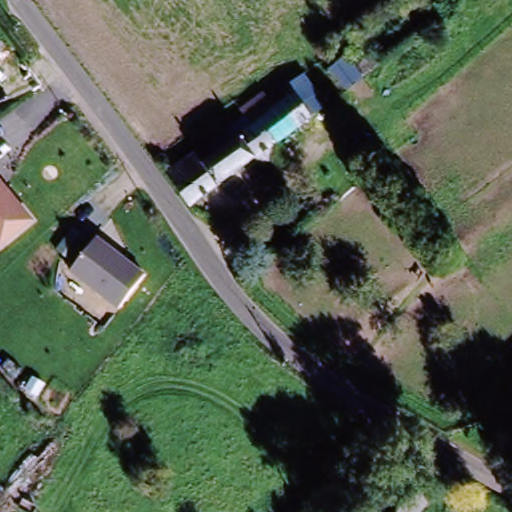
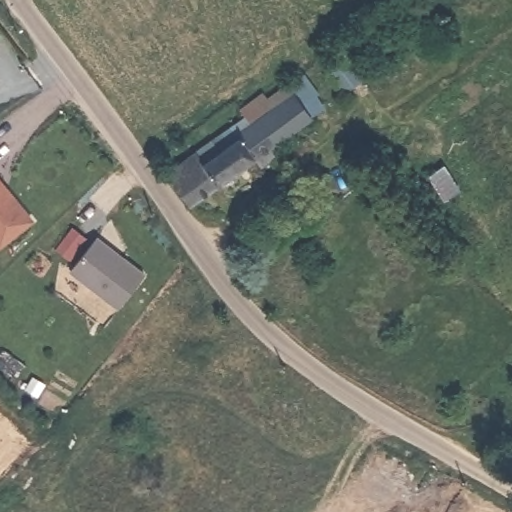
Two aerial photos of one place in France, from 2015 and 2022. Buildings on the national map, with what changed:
unchanged [(336,86),(322,66),(350,48),(359,58),(367,51),(377,62),(336,86)]
unchanged [(165,165),(256,110),(294,88),(305,107),(267,129),(177,183),(165,165)]
unchanged [(32,225),(0,250),(0,184),(32,225)]
unchanged [(147,276),(120,314),(82,285),(72,296),(60,286),(95,237),(147,276)]
unchanged [(389,512),(391,509),(395,512),(389,512)]

